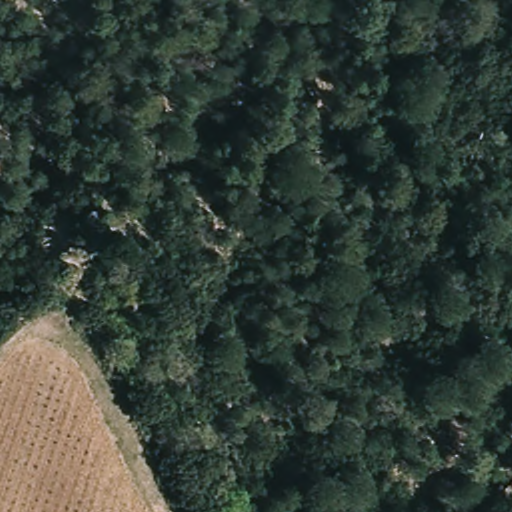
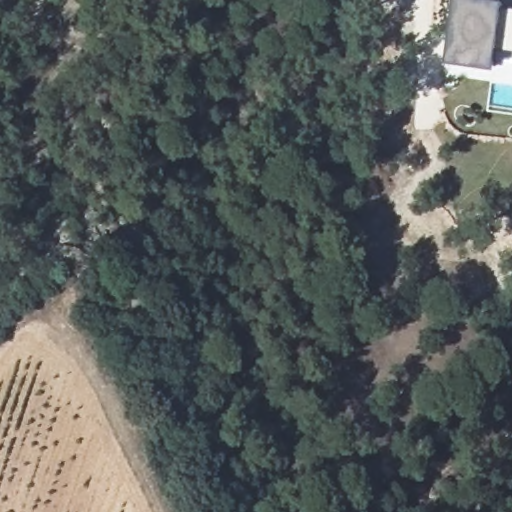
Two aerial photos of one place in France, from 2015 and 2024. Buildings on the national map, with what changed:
new [(502,9),(512,10),(512,55),(497,53),(494,71),(445,65),(455,0),(475,0),(503,4),(502,9)]

